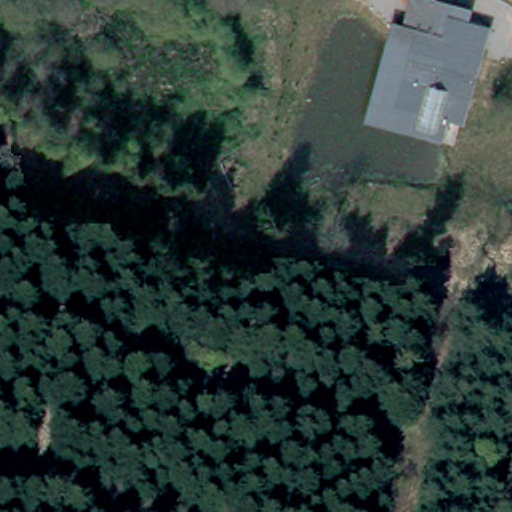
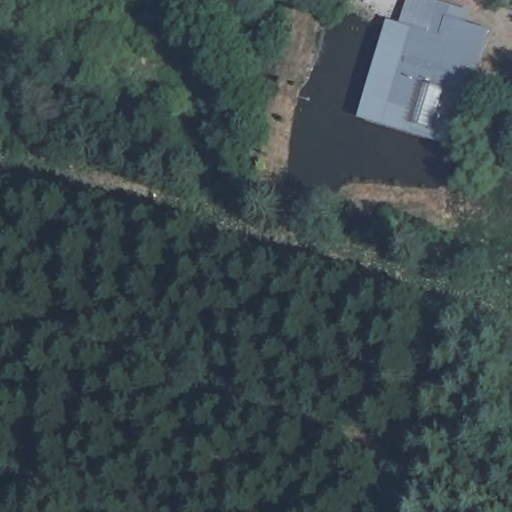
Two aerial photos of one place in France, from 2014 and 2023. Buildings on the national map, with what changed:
unchanged [(396,1),(449,14),(452,6),(472,10),(469,20),(490,31),(465,125),(449,120),(443,138),(366,116),(396,1)]

